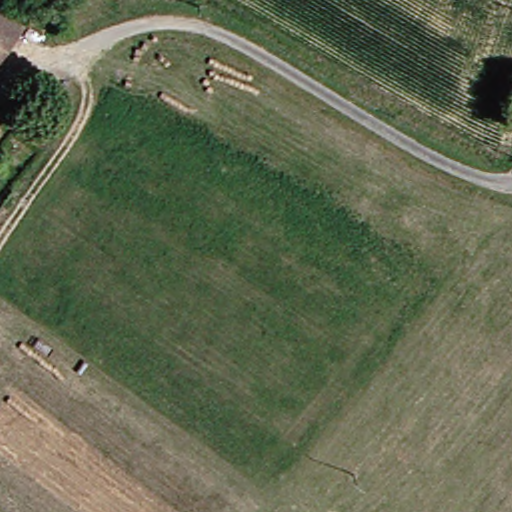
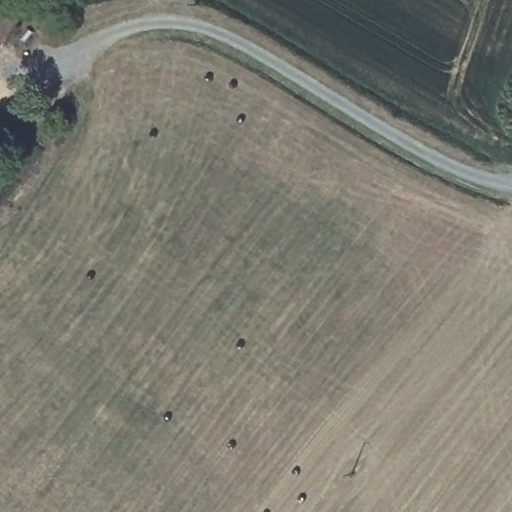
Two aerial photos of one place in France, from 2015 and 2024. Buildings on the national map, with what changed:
unchanged [(35,9),(0,60),(0,0),(20,0),(35,9)]
unchanged [(2,132),(0,133),(0,130),(2,132)]

